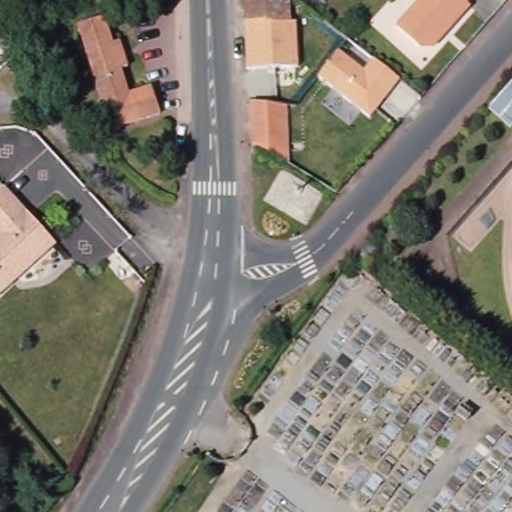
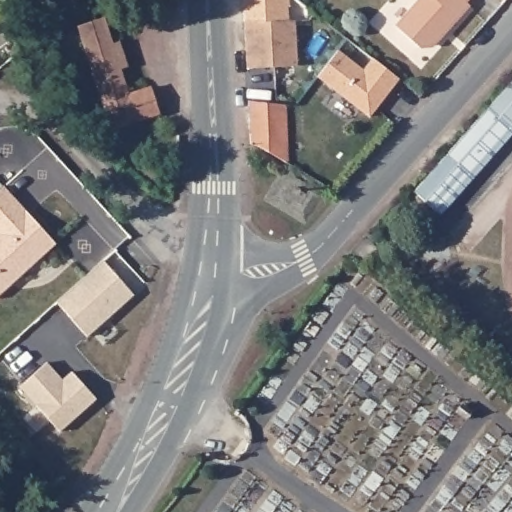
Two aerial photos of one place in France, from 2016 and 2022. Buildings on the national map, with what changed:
unchanged [(244,22),(243,0),(290,0),(290,23),(244,22)]
unchanged [(468,6),(431,47),(418,48),(395,27),(420,0),(467,0),(465,2),(468,6)]
unchanged [(128,95),(151,87),(159,115),(110,130),(102,105),(78,26),(104,18),(112,44),(119,41),(128,67),(120,70),(128,95)]
unchanged [(290,23),(297,23),(298,65),(246,69),(244,22),(290,23)]
unchanged [(363,71),(371,57),(401,82),(366,124),(314,82),(337,52),(363,71)]
unchanged [(488,109),(512,82),(512,127),(511,129),(488,109)]
unchanged [(287,104),(288,162),(250,142),(249,102),(287,104)]
unchanged [(49,240),(0,286),(0,188),(49,240)]
unchanged [(366,265),(352,252),(365,238),(379,251),(366,265)]
new [(104,261),(135,295),(88,337),(68,315),(57,302),(65,296),(104,261)]
new [(57,354),(73,372),(97,398),(61,432),(20,387),(48,362),(57,354)]

